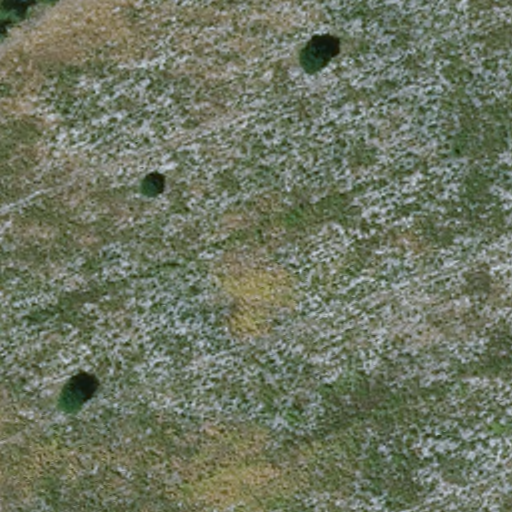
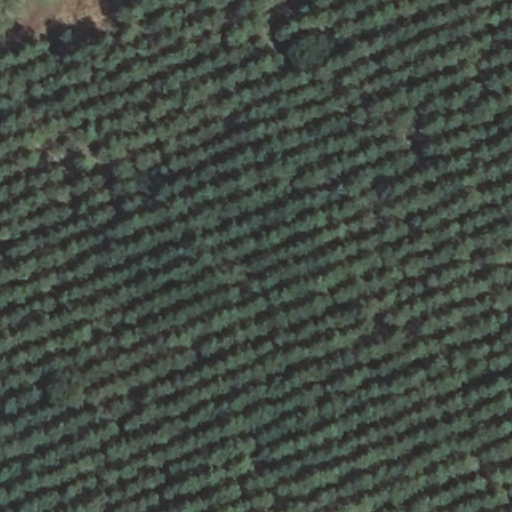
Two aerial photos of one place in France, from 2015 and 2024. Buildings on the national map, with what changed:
[]

